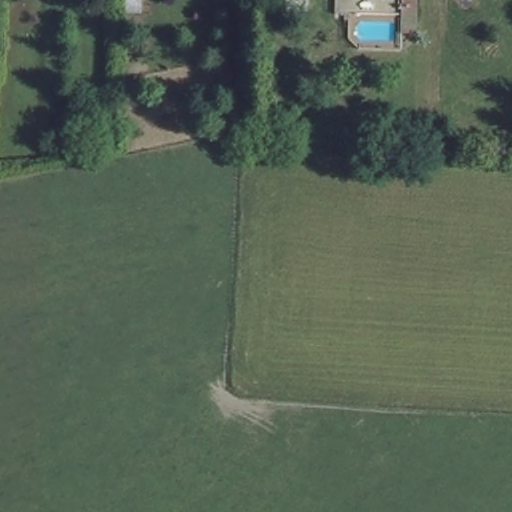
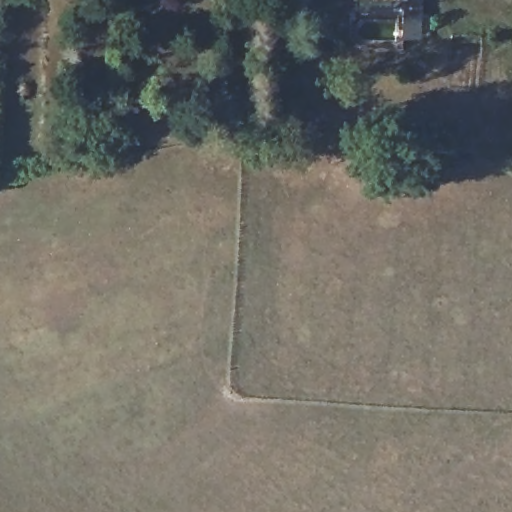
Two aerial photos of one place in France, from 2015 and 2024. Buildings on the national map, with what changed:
unchanged [(267,7),(268,0),(307,0),(306,12),(267,7)]

